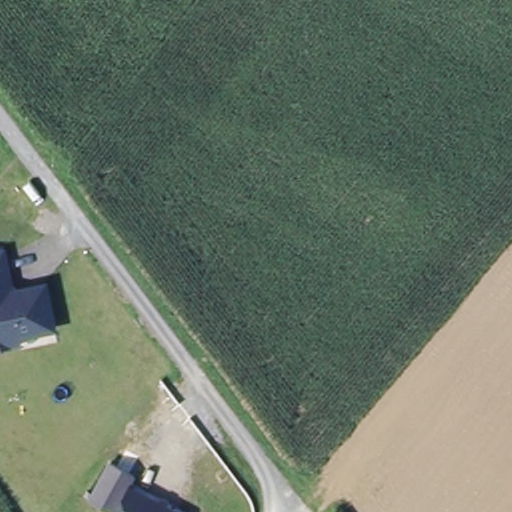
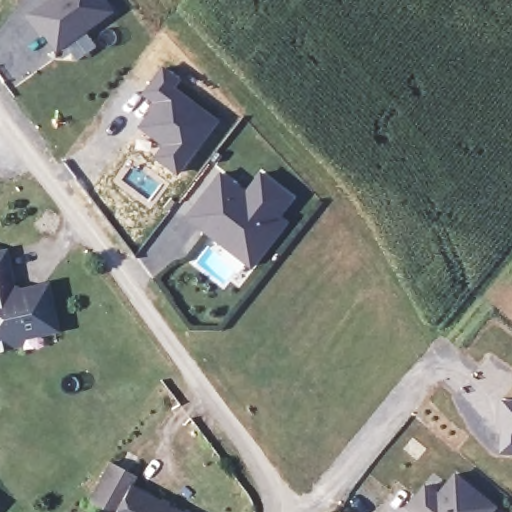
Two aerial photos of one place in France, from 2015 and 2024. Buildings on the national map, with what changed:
new [(50,0),(108,0),(114,10),(59,49),(43,27),(40,30),(29,15),(50,0)]
new [(153,103),(142,95),(163,65),(184,78),(179,86),(222,119),(179,175),(153,157),(161,145),(137,126),(153,103)]
new [(226,245),(206,229),(208,226),(190,212),(194,206),(220,172),(246,191),(261,172),(291,195),(276,215),(285,221),(270,240),(251,265),(226,245)]
unchanged [(19,330),(20,341),(0,345),(0,251),(6,250),(13,288),(33,285),(47,281),(48,289),(55,323),(19,330)]
new [(512,400),(512,451),(505,450),(506,417),(502,416),(502,400),(512,400)]
unchanged [(135,476),(129,486),(126,485),(112,512),(109,512),(87,498),(108,460),(135,476)]
new [(438,493),(456,472),(496,505),(491,512),(419,512),(409,504),(426,483),(438,493)]
unchanged [(129,486),(176,512),(112,512),(126,485),(129,486)]

